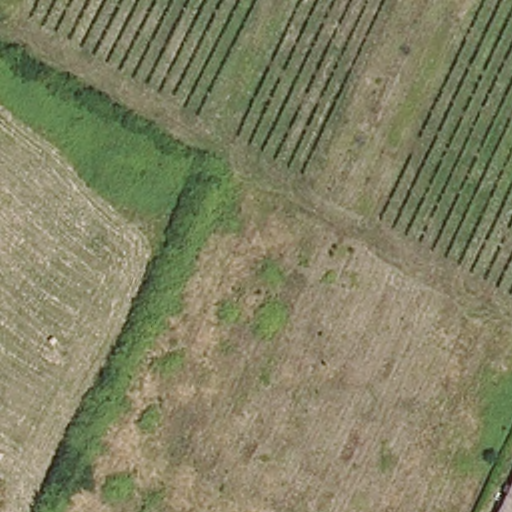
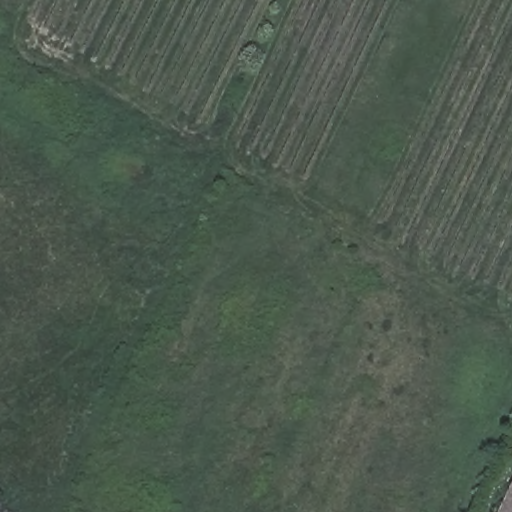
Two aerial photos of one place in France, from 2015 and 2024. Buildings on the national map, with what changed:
unchanged [(512,512),(496,512),(512,475),(512,512)]

